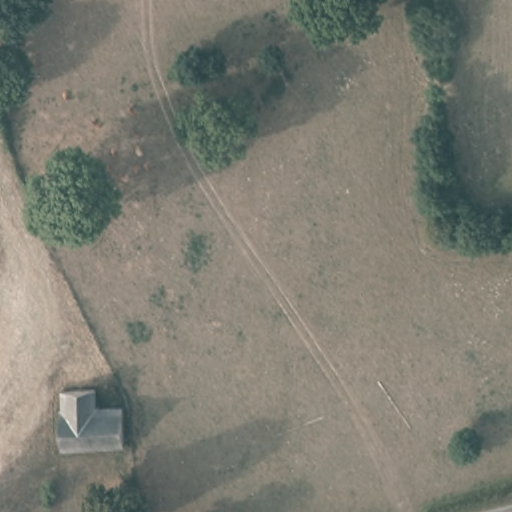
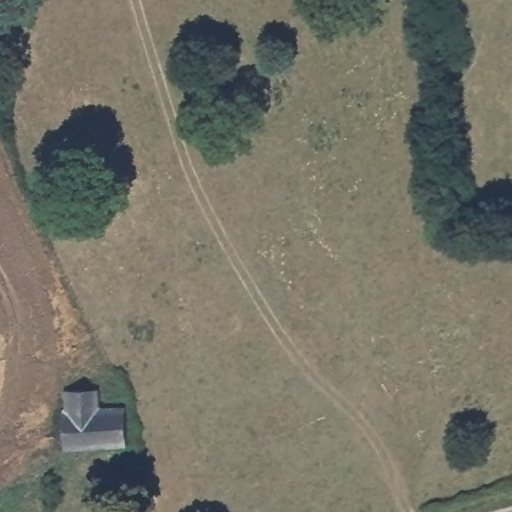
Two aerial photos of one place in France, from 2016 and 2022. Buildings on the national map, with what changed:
unchanged [(124,440),(63,443),(61,406),(64,405),(62,385),(96,385),(97,403),(123,402),(124,440)]

